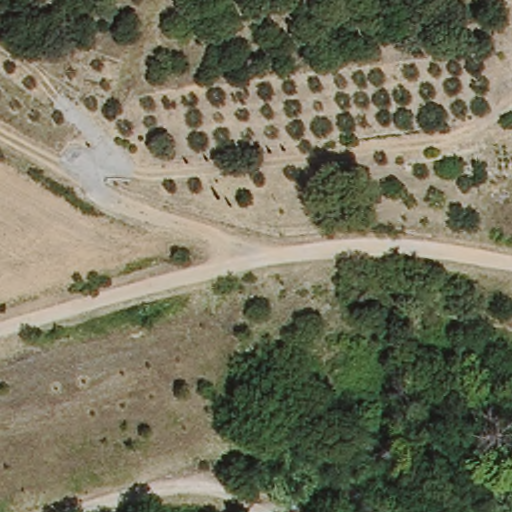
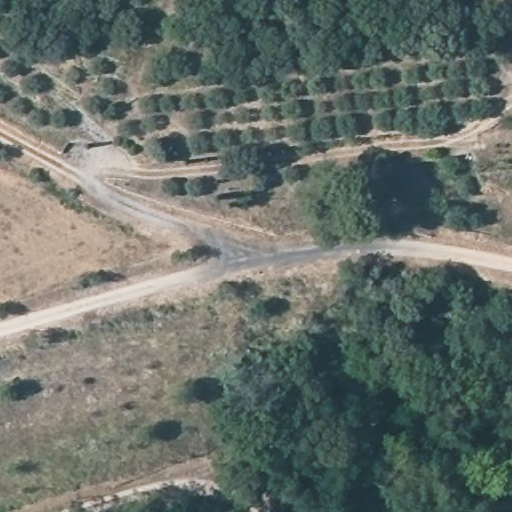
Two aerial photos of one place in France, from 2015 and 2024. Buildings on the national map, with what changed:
[]

